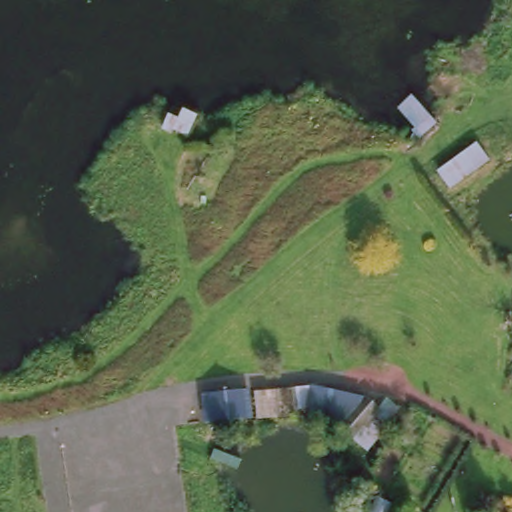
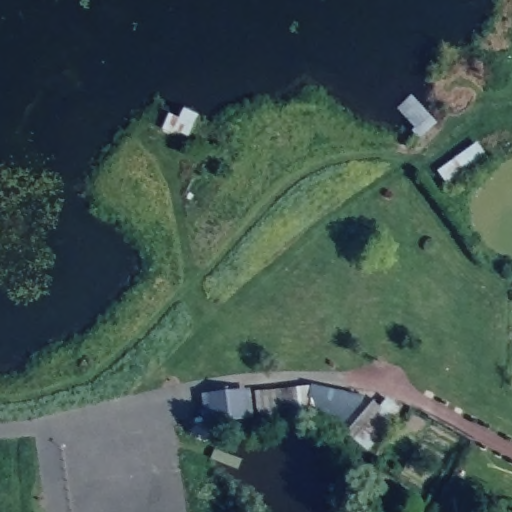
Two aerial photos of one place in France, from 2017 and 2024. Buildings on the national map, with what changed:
unchanged [(340,425),(330,421),(309,420),(307,409),(300,410),(300,417),(257,419),(254,391),(310,384),(365,394),(379,404),(385,398),(402,414),(365,451),(340,425)]
unchanged [(200,394),(247,388),(252,419),(204,423),(200,394)]

